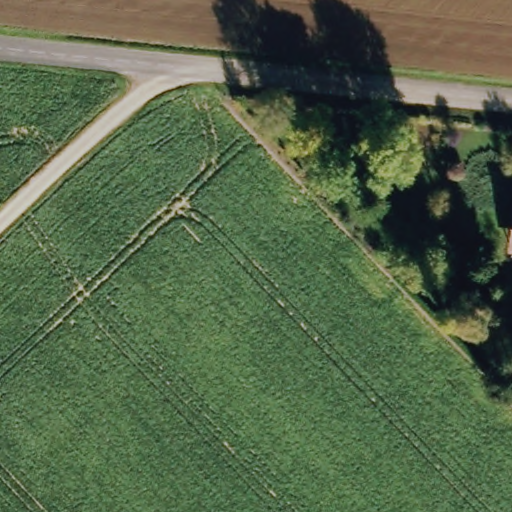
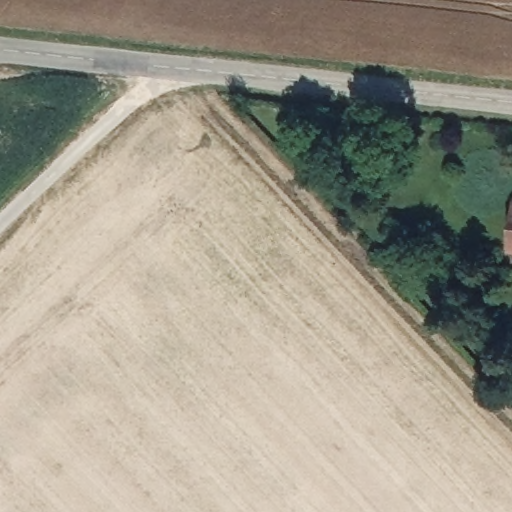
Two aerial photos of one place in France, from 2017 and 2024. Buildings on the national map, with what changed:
unchanged [(512,231),(512,240),(511,239),(512,231)]

